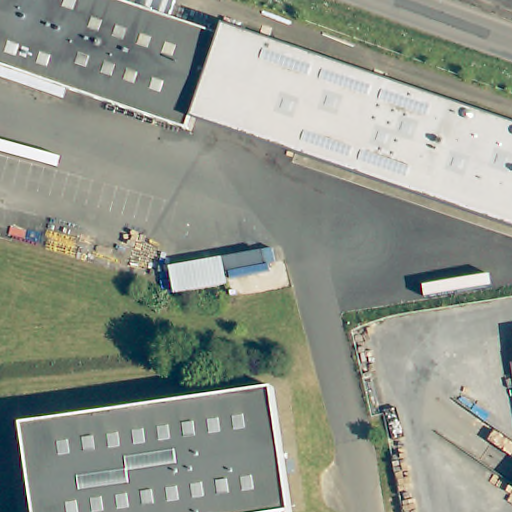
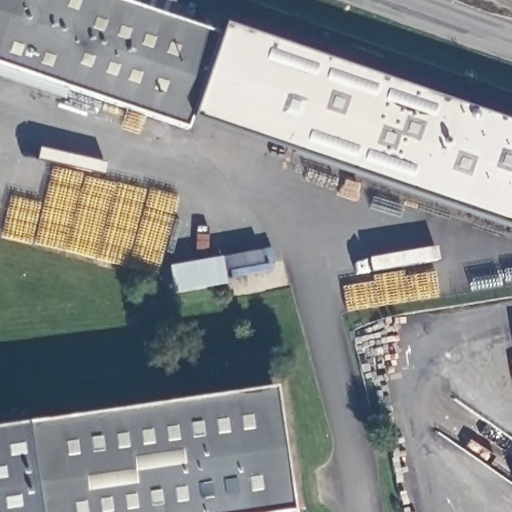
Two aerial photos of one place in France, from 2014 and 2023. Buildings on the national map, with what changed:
unchanged [(139,0),(173,0),(168,15),(219,31),(185,125),(0,62),(0,0),(128,0),(138,4),(139,0)]
unchanged [(219,31),(222,24),(512,124),(512,227),(190,115),(219,31)]
unchanged [(154,271),(205,261),(247,254),(250,268),(208,275),(211,287),(159,297),(154,271)]
unchanged [(22,427),(271,388),(290,512),(35,512),(22,427)]
new [(0,427),(19,425),(22,427),(35,512),(0,512),(0,427)]

